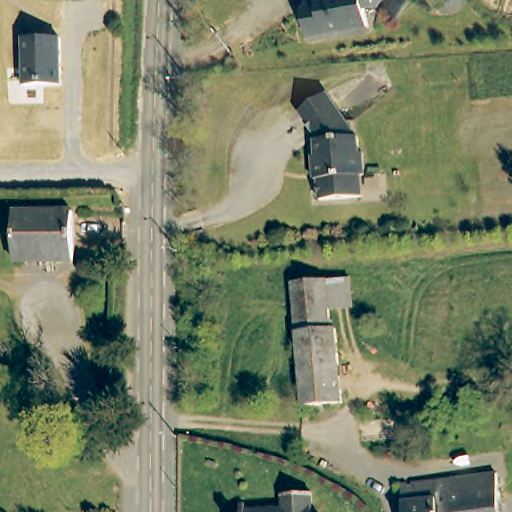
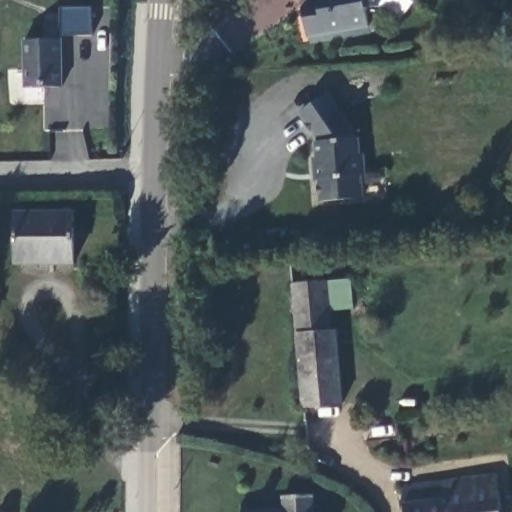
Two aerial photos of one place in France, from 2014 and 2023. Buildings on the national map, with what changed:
unchanged [(366,4),(364,24),(303,22),(303,2),(305,0),(383,0),(379,5),(366,4)]
unchanged [(25,40),(63,40),(64,87),(24,87),(25,40)]
unchanged [(319,158),(317,136),(302,109),(329,92),(357,139),(362,137),(365,156),(366,156),(369,176),(361,177),(364,197),(320,199),(320,175),(315,176),(315,158),(319,158)]
unchanged [(73,214),(72,265),(11,264),(12,212),(73,214)]
unchanged [(337,329),(344,400),(306,403),(294,282),(327,279),(350,276),(353,303),(330,306),(333,330),(337,329)]
unchanged [(401,439),(367,441),(364,416),(422,411),(424,437),(431,437),(432,456),(403,458),(401,439)]
unchanged [(405,488),(439,483),(499,476),(504,512),(408,512),(405,488)]
unchanged [(243,511),(282,507),(281,496),(311,493),(313,512),(244,512),(243,511)]

